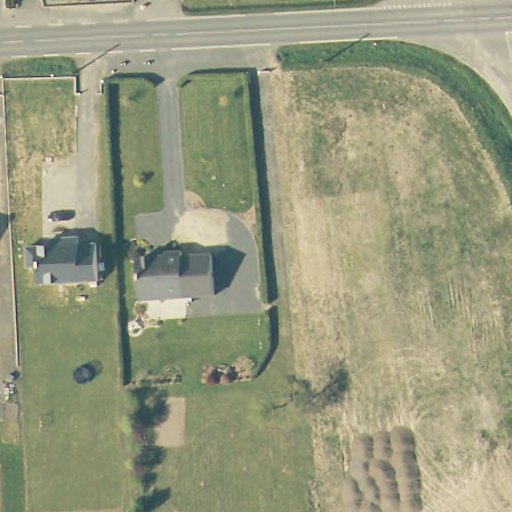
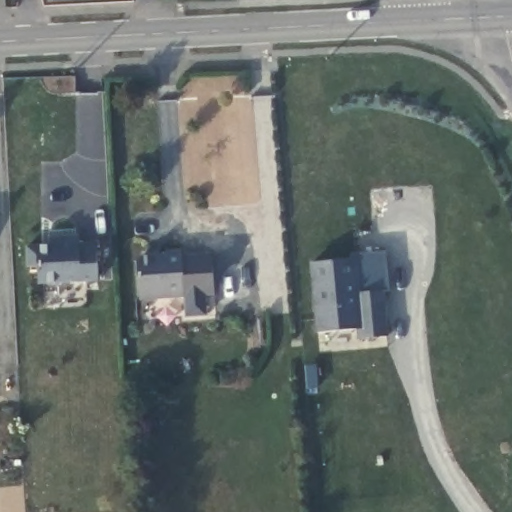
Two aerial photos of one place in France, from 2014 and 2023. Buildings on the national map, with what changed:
unchanged [(101,280),(92,280),(41,283),(40,265),(31,266),(30,246),(54,244),(54,237),(81,236),(82,243),(90,243),(99,242),(101,280)]
unchanged [(183,250),(214,249),(216,289),(141,293),(138,257),(144,252),(166,251),(170,246),(183,245),(183,250)]
new [(355,258),(352,254),(386,251),(389,291),(385,292),(390,336),(358,339),(357,330),(317,333),(310,263),(355,258)]

